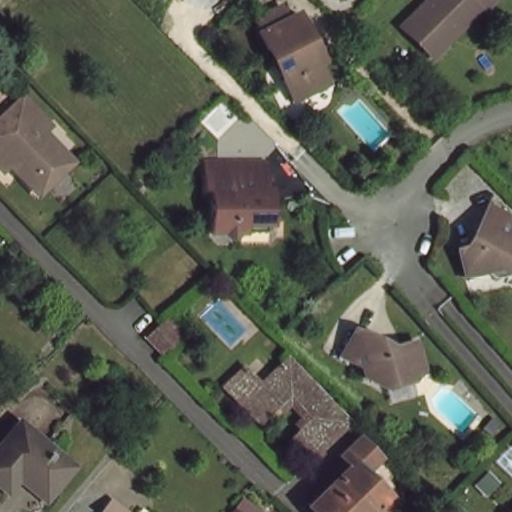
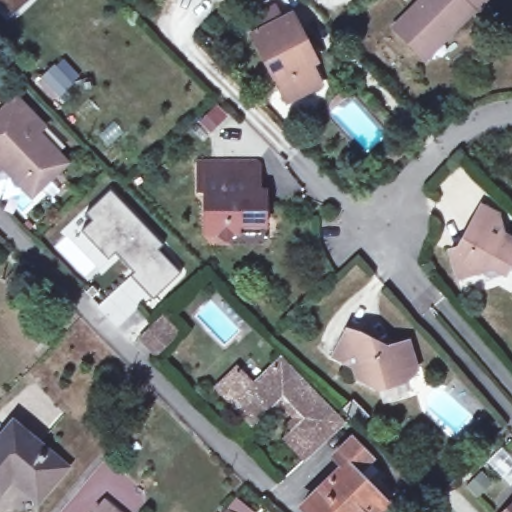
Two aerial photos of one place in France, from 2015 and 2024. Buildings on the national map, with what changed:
unchanged [(393,29),(420,0),(486,0),(475,11),(472,9),(439,42),(424,59),(416,51),(393,29)]
unchanged [(321,87),(286,104),(253,37),(294,17),(309,48),(303,52),(321,87)]
unchanged [(11,159),(0,170),(0,169),(0,113),(18,96),(47,124),(36,135),(64,165),(40,189),(11,159)]
unchanged [(231,232),(224,240),(216,232),(205,233),(203,193),(196,193),(194,165),(258,162),(259,190),(264,190),(265,202),(265,225),(259,225),(259,232),(231,232)]
new [(91,220),(84,213),(110,188),(164,244),(160,248),(182,272),(151,301),(148,298),(129,274),(115,255),(108,261),(80,231),(91,220)]
unchanged [(512,257),(504,275),(492,268),(457,278),(448,252),(466,246),(472,235),(467,232),(474,217),(480,205),(494,212),(497,222),(501,233),(512,239),(512,257)]
new [(148,298),(117,327),(96,304),(129,274),(148,298)]
unchanged [(160,317),(176,333),(153,355),(138,339),(160,317)]
unchanged [(354,379),(359,372),(331,358),(344,331),(359,338),(361,335),(376,343),(375,346),(381,349),(408,342),(416,368),(401,373),(405,383),(378,391),(354,379)]
unchanged [(278,355),(339,420),(317,441),(308,450),(306,452),(301,456),(284,437),(307,414),(279,385),(246,417),(214,385),(234,366),(249,382),(278,355)]
unchanged [(12,475),(0,489),(0,436),(12,422),(64,467),(48,486),(43,481),(30,496),(14,482),(18,478),(12,475)]
unchanged [(384,503),(375,512),(309,512),(301,503),(344,462),(334,452),(349,437),(385,474),(370,488),(384,503)]
unchanged [(512,495),(512,512),(494,512),(512,495)]
unchanged [(99,512),(110,498),(126,512),(100,512),(99,512)]
unchanged [(230,499),(245,512),(219,512),(230,499)]

